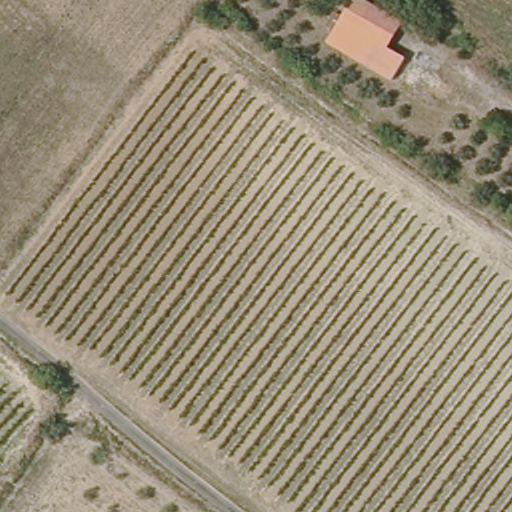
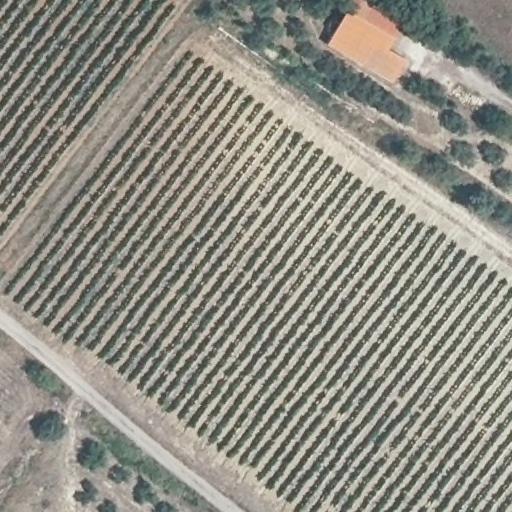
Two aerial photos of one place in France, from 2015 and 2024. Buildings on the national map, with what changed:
unchanged [(347,18),(355,6),(358,0),(376,0),(386,6),(406,20),(392,44),(412,58),(400,76),(395,84),(332,41),(335,36),(347,18)]

